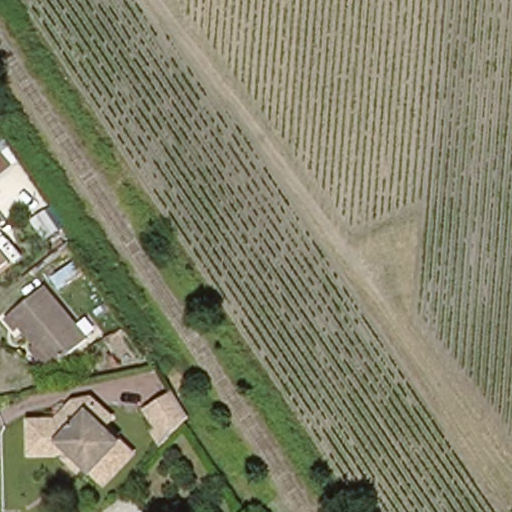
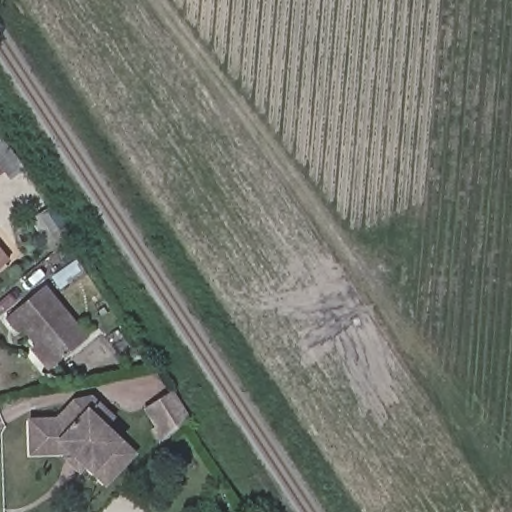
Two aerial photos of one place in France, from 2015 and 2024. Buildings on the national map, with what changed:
unchanged [(0,265),(0,250),(8,259),(0,265)]
unchanged [(30,347),(37,341),(21,322),(14,328),(5,314),(43,284),(86,339),(56,364),(50,369),(30,347)]
unchanged [(148,424),(155,419),(141,397),(164,383),(184,416),(166,435),(160,442),(148,424)]
unchanged [(65,457),(74,449),(34,458),(25,422),(49,417),(58,414),(73,397),(92,395),(98,399),(113,412),(103,424),(132,451),(106,480),(85,460),(78,469),(65,457)]

